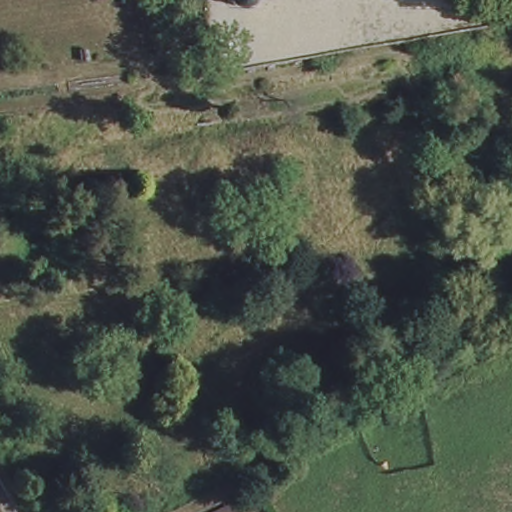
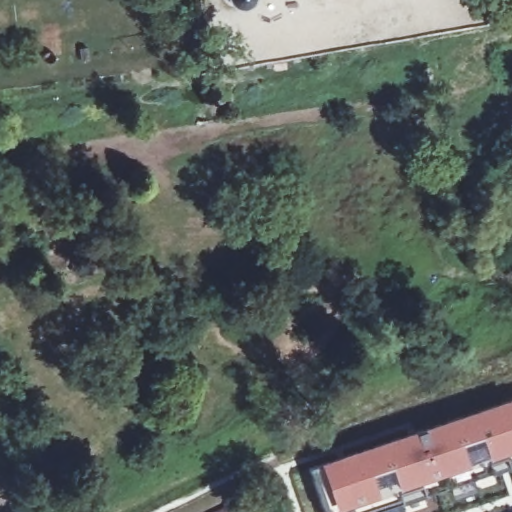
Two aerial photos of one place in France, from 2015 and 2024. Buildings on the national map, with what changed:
unchanged [(240,5),(234,6),(227,2),(226,0),(247,0),(246,2),(240,5)]
unchanged [(78,61),(76,51),(85,50),(88,60),(78,61)]
new [(319,464),(512,400),(512,465),(472,478),(474,490),(453,497),(448,486),(397,503),(400,512),(376,512),(376,511),(372,512),(325,512),(311,467),(319,464)]
unchanged [(232,502),(237,512),(212,512),(232,502)]

